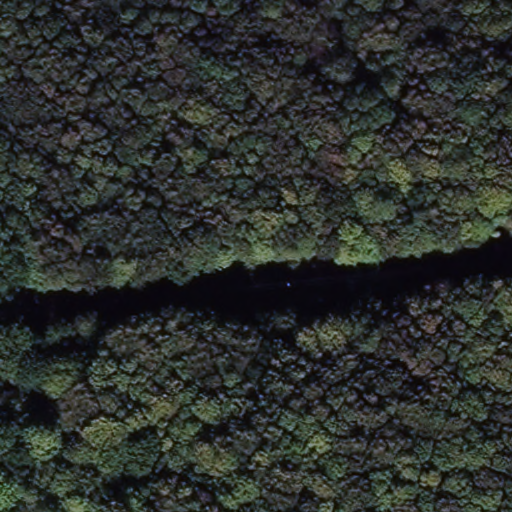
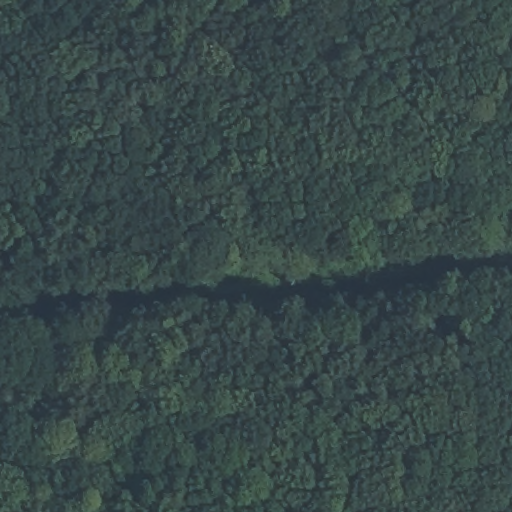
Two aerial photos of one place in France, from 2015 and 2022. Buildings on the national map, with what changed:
[]

